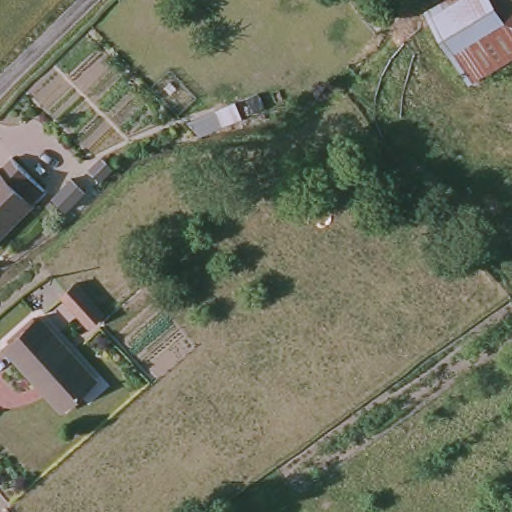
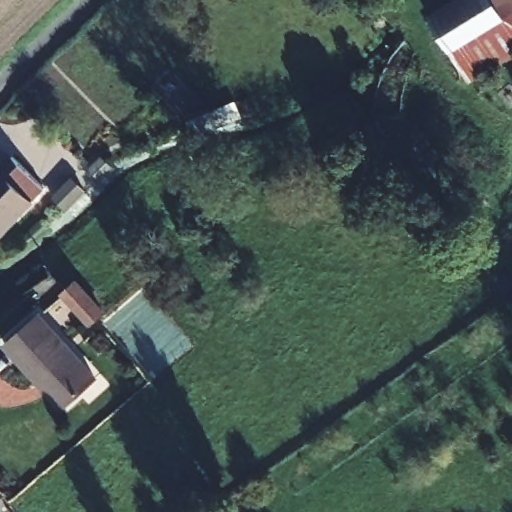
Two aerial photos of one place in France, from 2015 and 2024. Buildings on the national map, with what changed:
unchanged [(419,8),(433,0),(510,0),(512,4),(512,54),(463,84),(419,8)]
unchanged [(510,0),(512,0),(512,4),(510,0)]
unchanged [(0,233),(0,168),(4,165),(6,167),(20,155),(50,192),(0,233)]
unchanged [(76,282),(103,311),(89,324),(62,294),(76,282)]
unchanged [(90,383),(56,413),(0,350),(34,320),(90,383)]

